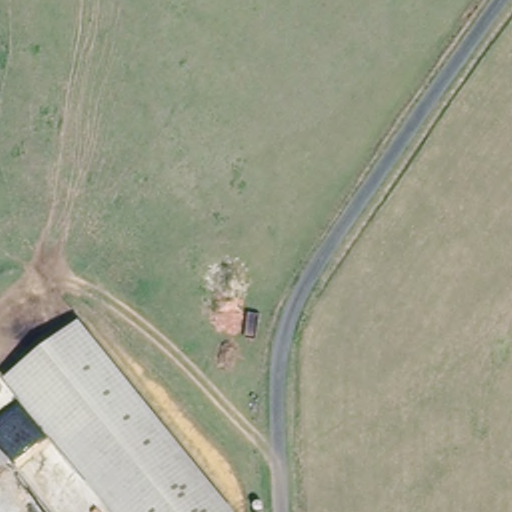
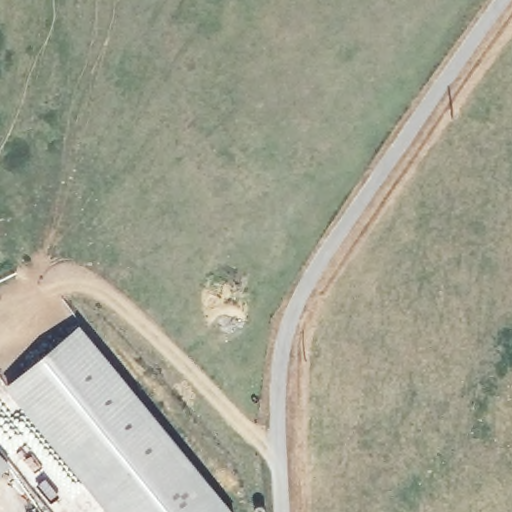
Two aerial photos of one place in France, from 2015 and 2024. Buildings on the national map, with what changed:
unchanged [(228,512),(116,512),(6,379),(77,322),(231,510),(228,512)]
unchanged [(0,475),(0,458),(8,467),(0,475)]
unchanged [(232,512),(228,512),(231,510),(232,512)]

